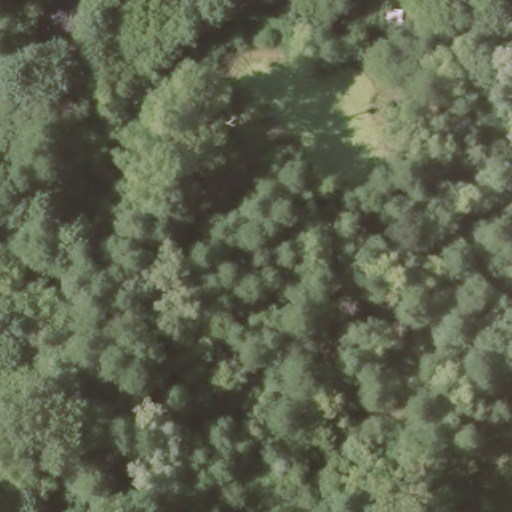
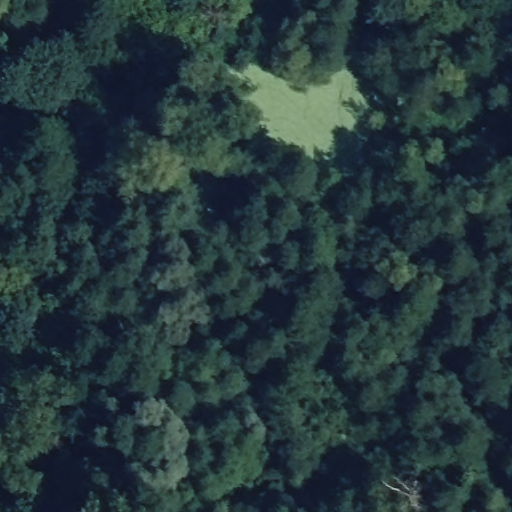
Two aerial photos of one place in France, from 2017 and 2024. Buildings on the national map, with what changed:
unchanged [(402,11),(402,30),(382,29),(381,10),(402,11)]

